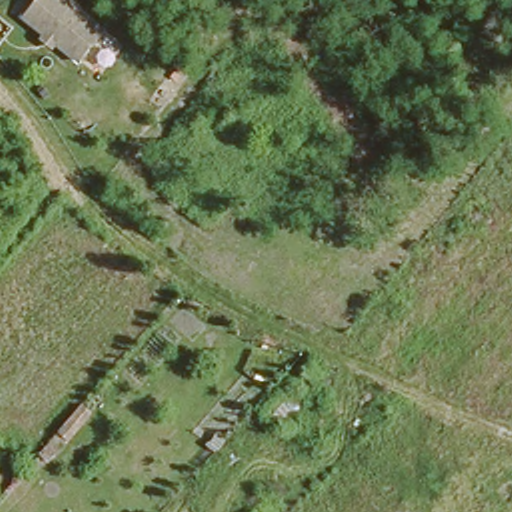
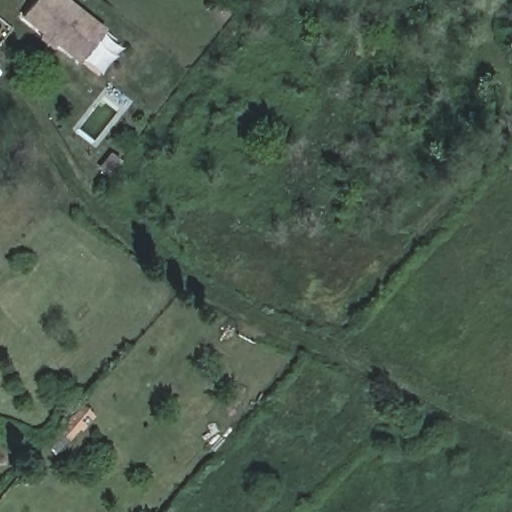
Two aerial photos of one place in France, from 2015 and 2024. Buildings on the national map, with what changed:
unchanged [(77,57),(20,11),(20,10),(30,0),(69,0),(102,27),(77,57)]
unchanged [(337,422),(322,433),(309,424),(295,435),(286,426),(311,401),(337,422)]

